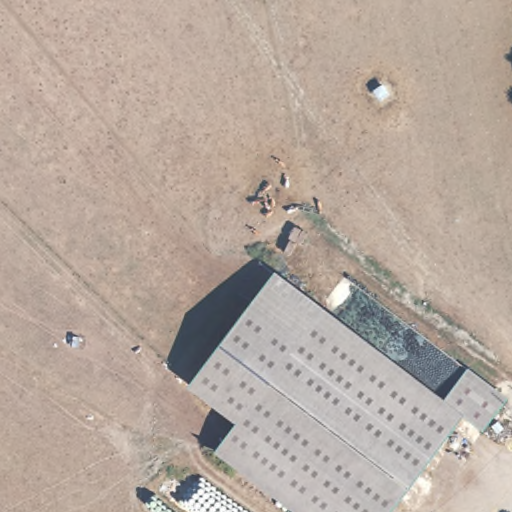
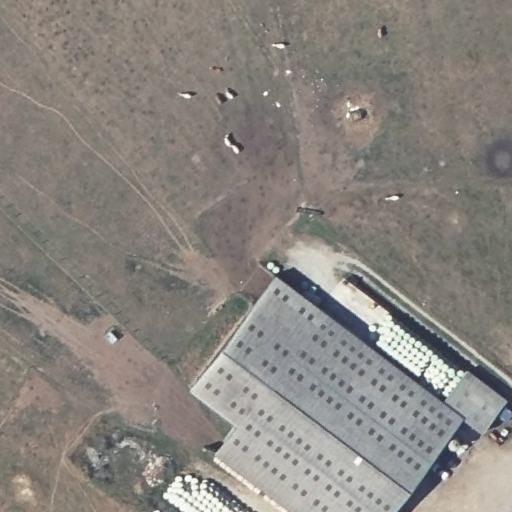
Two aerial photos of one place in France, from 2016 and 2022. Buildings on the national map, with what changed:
unchanged [(255,292),(301,326),(230,422),(184,387),(255,292)]
unchanged [(437,405),(461,372),(496,398),(472,430),(452,415),(380,512),(293,512),(209,451),(230,422),(301,326),(310,314),(437,405)]

